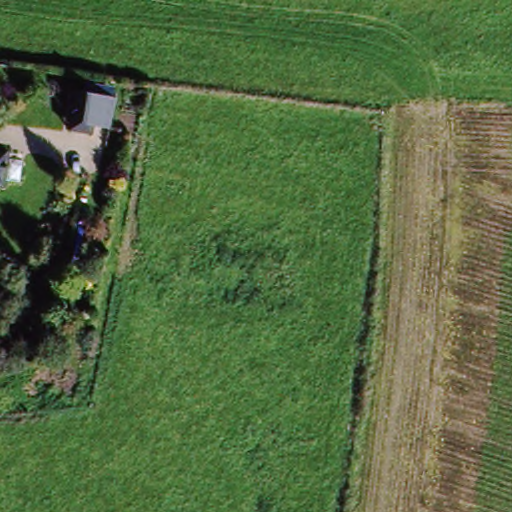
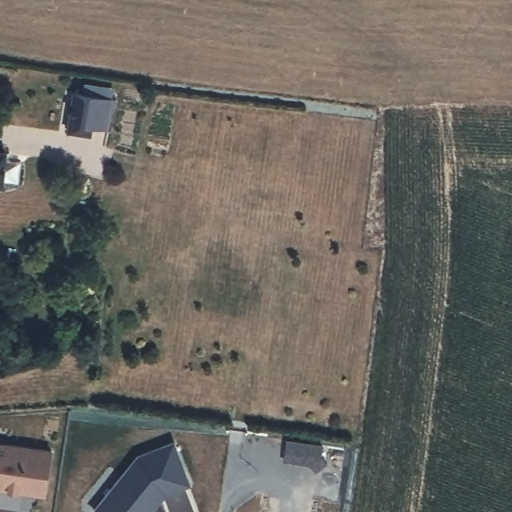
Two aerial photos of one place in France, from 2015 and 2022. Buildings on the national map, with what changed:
unchanged [(67,130),(70,120),(74,88),(116,96),(110,129),(90,124),(88,134),(67,130)]
unchanged [(0,182),(0,156),(4,156),(0,182)]
new [(192,481),(167,492),(150,512),(97,512),(94,509),(139,451),(175,438),(192,481)]
new [(47,496),(0,489),(0,441),(54,448),(47,496)]

